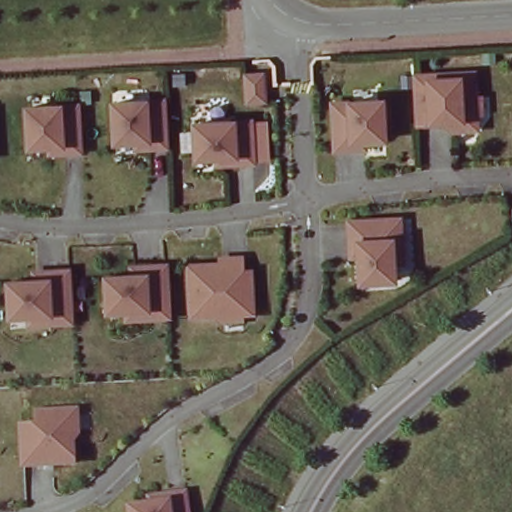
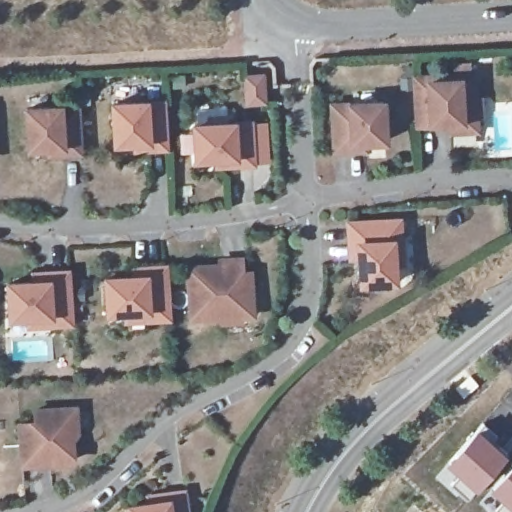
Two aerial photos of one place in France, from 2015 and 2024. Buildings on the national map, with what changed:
unchanged [(481,115),(476,115),(476,130),(450,132),(450,124),(418,126),(416,100),(415,77),(473,74),(475,98),(480,98),(481,115)]
unchanged [(263,76),(264,101),(247,102),(245,76),(263,76)]
unchanged [(135,143),(115,144),(113,104),(163,102),(165,133),(166,148),(148,149),(136,149),(135,143)]
unchanged [(353,150),(335,151),(332,105),(383,102),(385,141),(364,142),(365,149),(353,150)]
unchanged [(49,148),(29,149),(27,109),(77,106),(80,152),(62,153),(50,154),(49,148)]
unchanged [(217,158),(196,159),(194,126),(250,122),(253,163),(235,164),(217,165),(217,158)]
unchanged [(393,263),(394,281),(360,283),(359,257),(351,257),(350,244),(349,223),(400,220),(401,241),(402,262),(393,263)]
unchanged [(224,321),(223,316),(191,318),(188,268),(220,266),(220,261),(241,259),(242,272),(250,272),(251,288),(252,314),(240,315),(241,320),(224,321)]
unchanged [(126,312),(107,313),(106,279),(131,277),(131,269),(144,268),(165,267),(166,272),(168,318),(147,319),(126,320),(126,312)]
unchanged [(28,317),(10,318),(8,284),(34,282),(34,274),(47,273),(68,272),(69,291),(71,323),(50,324),(29,325),(28,317)]
unchanged [(20,423),(36,422),(35,410),(75,408),(76,432),(70,433),(72,461),(22,464),(20,423)]
new [(478,428),(507,454),(474,491),(444,465),(478,428)]
new [(497,512),(494,509),(500,502),(487,487),(512,462),(512,512),(497,512)]
unchanged [(129,512),(129,506),(149,503),(148,496),(166,494),(184,491),(186,512),(129,512)]

